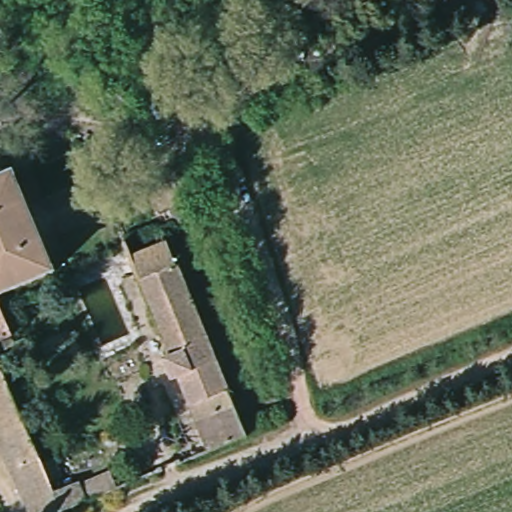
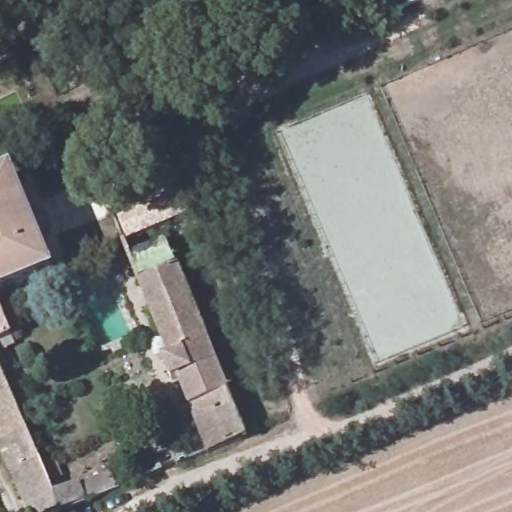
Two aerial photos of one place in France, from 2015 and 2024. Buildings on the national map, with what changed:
unchanged [(79,104),(70,118),(37,96),(46,82),(79,104)]
unchanged [(10,174),(51,271),(0,292),(0,178),(10,174)]
unchanged [(164,238),(245,431),(210,444),(131,252),(164,238)]
unchanged [(7,335),(0,338),(0,316),(7,335)]
unchanged [(26,434),(0,445),(0,374),(26,434)]
unchanged [(115,488),(84,501),(59,511),(56,512),(27,512),(0,449),(0,445),(26,434),(39,464),(53,458),(61,475),(46,482),(52,496),(78,485),(109,472),(115,488)]

